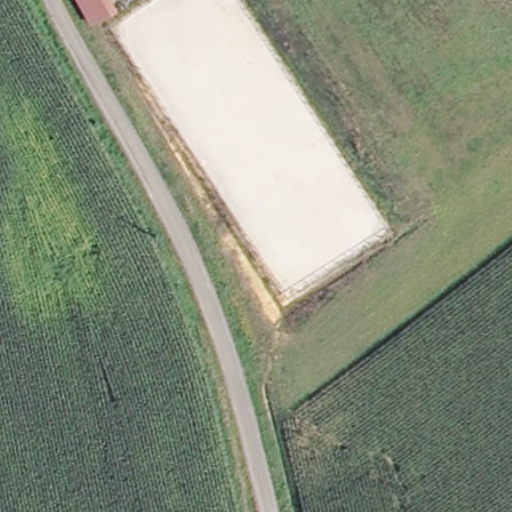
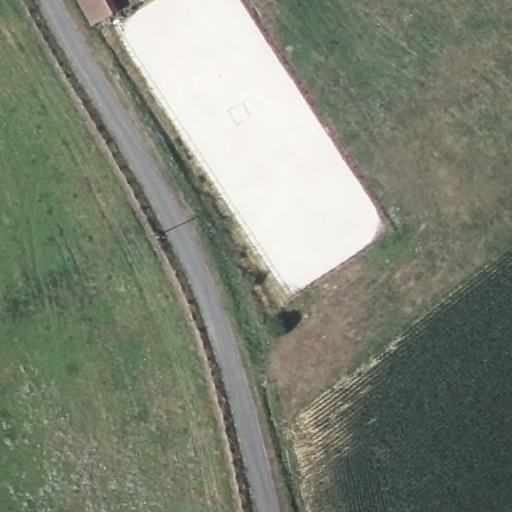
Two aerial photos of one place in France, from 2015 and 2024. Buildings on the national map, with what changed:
unchanged [(118,11),(91,25),(76,0),(112,0),(118,11)]

